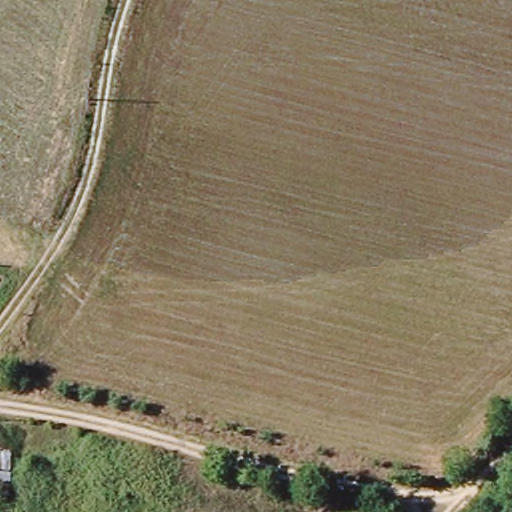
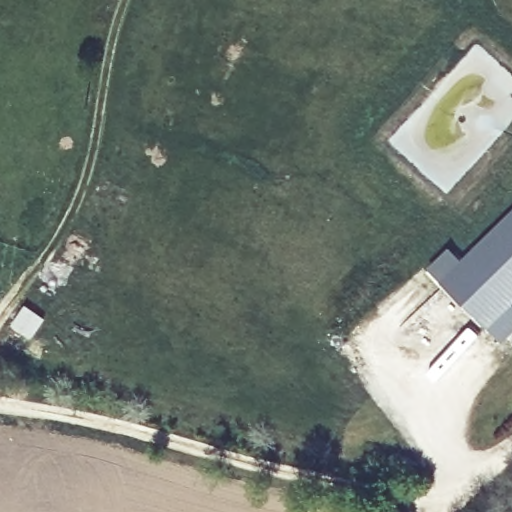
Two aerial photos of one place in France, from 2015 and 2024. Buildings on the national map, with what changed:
new [(512,211),(512,333),(502,343),(430,267),(451,248),(462,259),(512,211)]
demolished [(14,484),(0,484),(0,448),(14,450),(14,484)]

